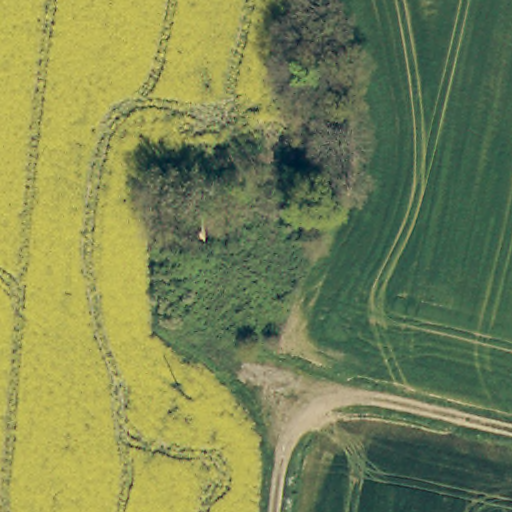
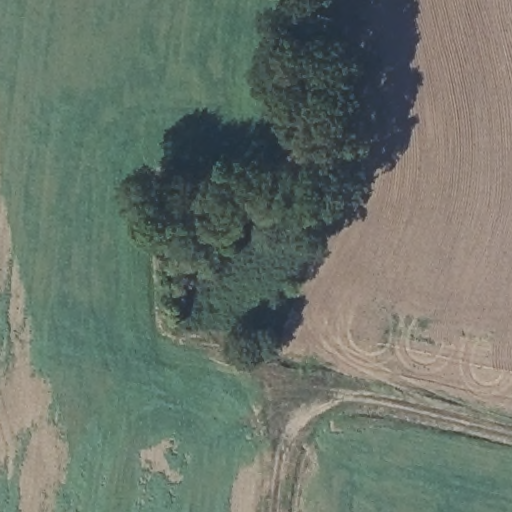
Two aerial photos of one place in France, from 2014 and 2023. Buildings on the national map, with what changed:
[]

